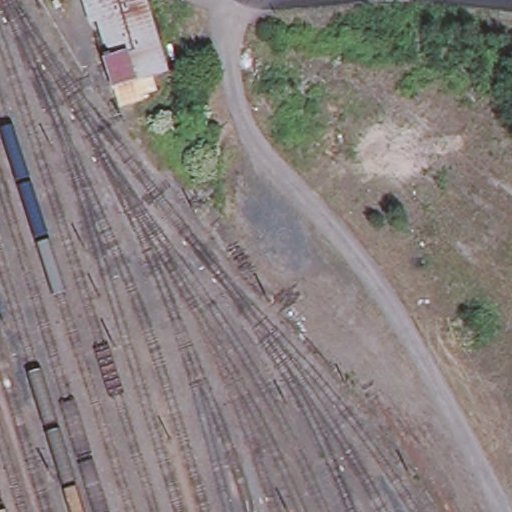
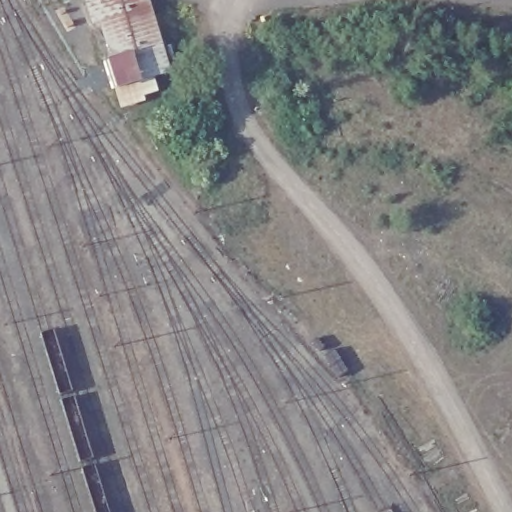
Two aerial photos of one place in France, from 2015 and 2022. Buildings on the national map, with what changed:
unchanged [(117,89),(114,90),(108,72),(113,69),(100,23),(93,24),(87,4),(99,0),(145,0),(167,74),(150,79),(152,92),(138,95),(140,101),(122,106),(117,89)]

